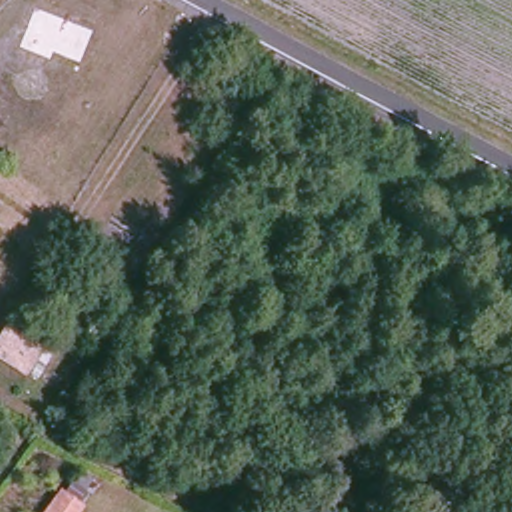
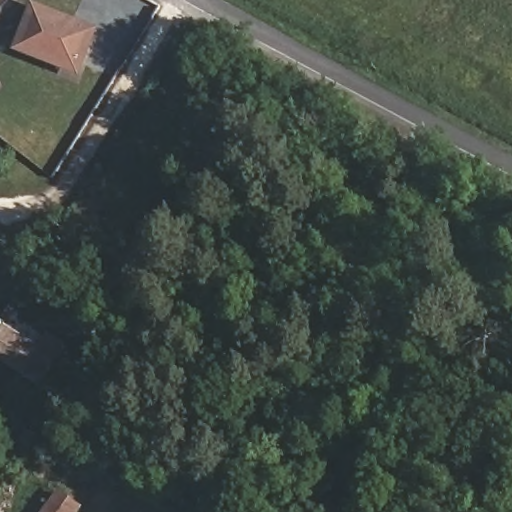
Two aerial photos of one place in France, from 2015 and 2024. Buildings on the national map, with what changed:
new [(16,51),(33,1),(100,27),(81,76),(16,51)]
unchanged [(0,359),(0,333),(3,328),(39,350),(24,374),(0,359)]
unchanged [(62,494),(80,508),(77,512),(49,512),(62,494)]

